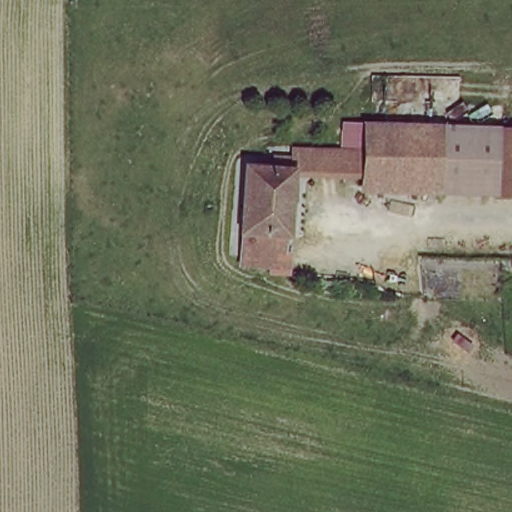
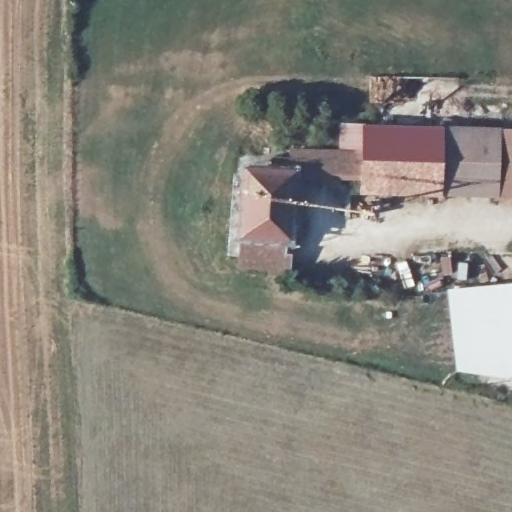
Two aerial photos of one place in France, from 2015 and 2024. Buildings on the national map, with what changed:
unchanged [(370,187),(349,187),(349,128),(372,128),(370,187)]
unchanged [(446,195),(370,192),(370,187),(372,128),(446,130),(446,193),(446,195)]
unchanged [(474,194),(446,193),(446,130),(474,130),(474,187),(474,194)]
unchanged [(474,187),(474,130),(507,131),(506,188),(474,187)]
unchanged [(512,132),(512,196),(506,195),(506,188),(507,131),(512,132)]
unchanged [(272,164),(291,165),(284,240),(277,239),(275,272),(240,269),(246,174),(271,176),(272,164)]
unchanged [(285,268),(286,253),(306,253),(306,269),(285,268)]
new [(501,377),(455,369),(446,289),(512,281),(512,374),(501,377)]

